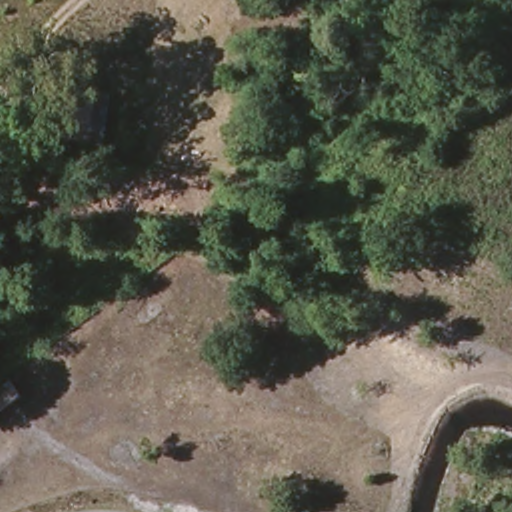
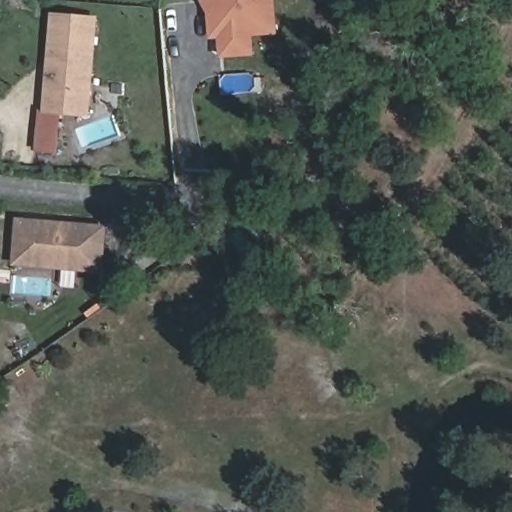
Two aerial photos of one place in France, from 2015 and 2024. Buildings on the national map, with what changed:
new [(252,37),(254,57),(220,60),(218,39),(210,40),(207,0),(275,0),(278,36),(252,37)]
new [(43,112),(52,14),(100,18),(91,117),(43,112)]
new [(104,274),(13,265),(17,217),(109,225),(104,274)]

